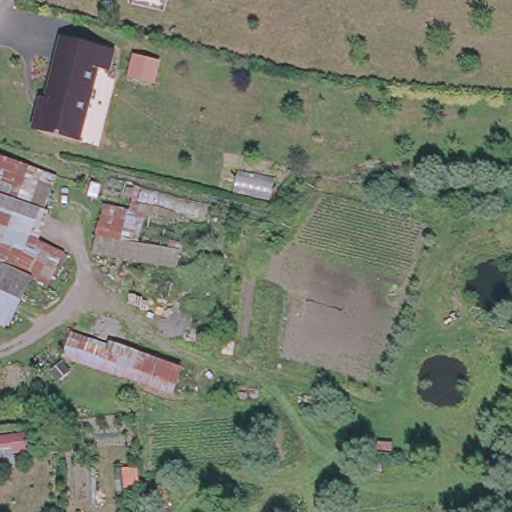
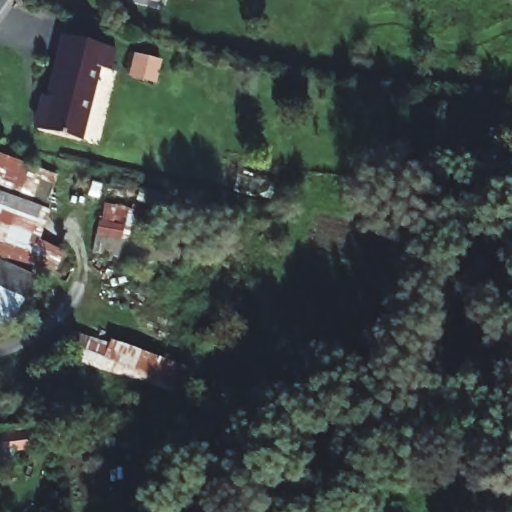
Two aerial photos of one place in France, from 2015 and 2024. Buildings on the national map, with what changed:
unchanged [(108,46),(102,68),(95,66),(76,139),(34,129),(30,122),(33,110),(40,108),(59,34),(108,46)]
unchanged [(62,175),(36,249),(60,259),(47,291),(29,285),(12,330),(0,325),(0,151),(62,175)]
unchanged [(98,202),(125,210),(116,258),(87,252),(98,202)]
unchanged [(186,365),(171,401),(61,362),(69,342),(105,354),(111,342),(186,365)]

